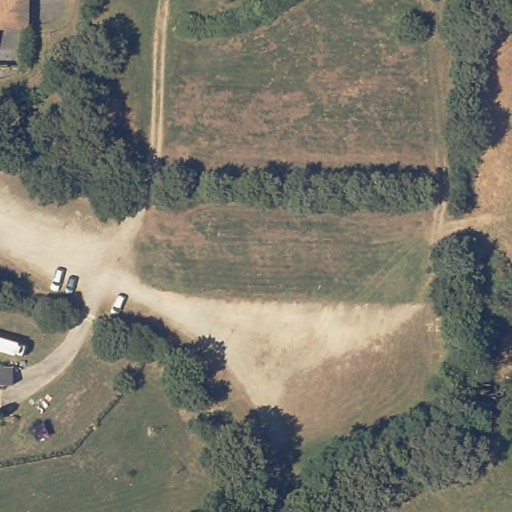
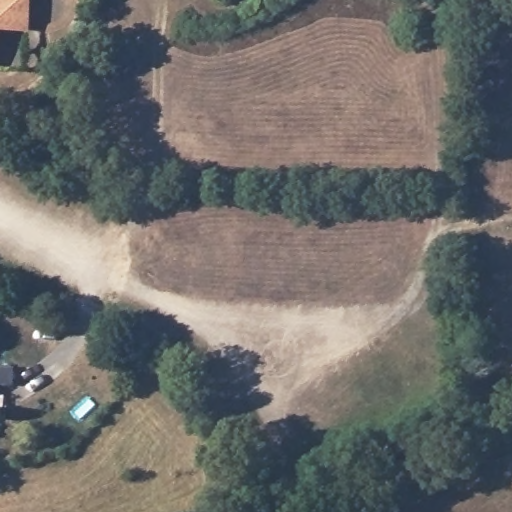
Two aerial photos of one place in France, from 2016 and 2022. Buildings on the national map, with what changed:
unchanged [(0,0),(17,0),(17,18),(17,25),(0,25),(0,0)]
unchanged [(8,383),(0,383),(0,368),(8,368),(8,383)]

